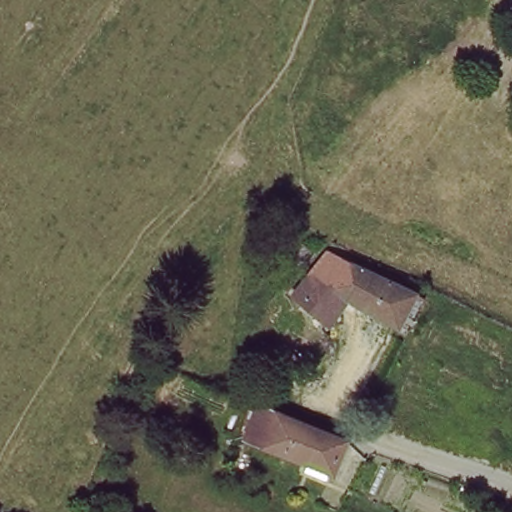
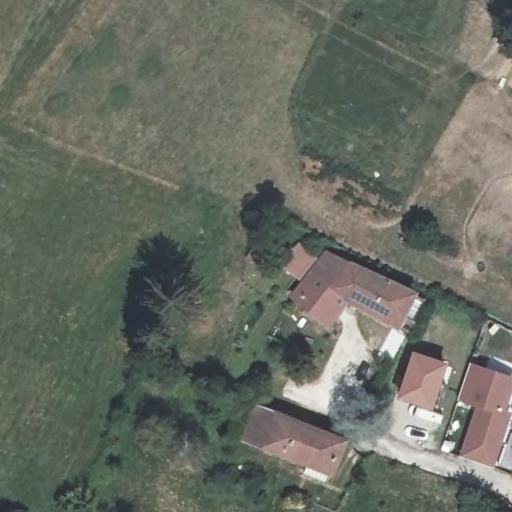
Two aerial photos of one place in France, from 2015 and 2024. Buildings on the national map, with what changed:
unchanged [(397,333),(347,310),(323,341),(282,317),(310,282),(333,261),(398,289),(412,296),(397,333)]
new [(412,351),(448,364),(433,412),(395,399),(412,351)]
new [(474,361),(512,373),(512,393),(507,408),(512,409),(512,416),(497,463),(470,454),(485,402),(463,394),(474,361)]
unchanged [(288,419),(259,407),(270,387),(297,399),(288,419)]
unchanged [(322,476),(303,469),(275,461),(255,454),(270,421),(288,427),(313,435),(337,443),(322,476)]

